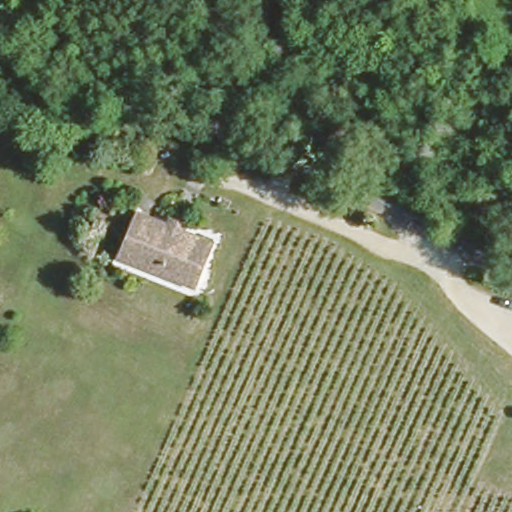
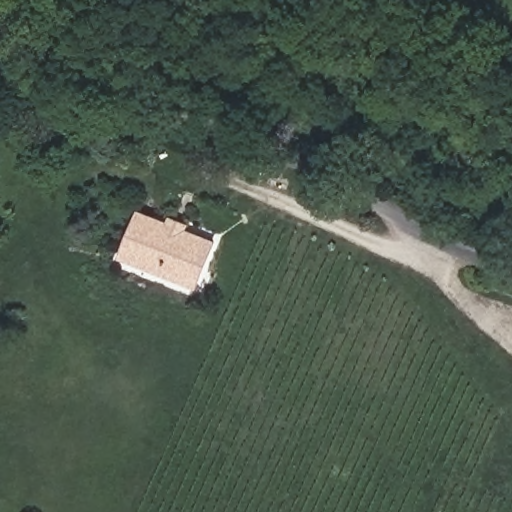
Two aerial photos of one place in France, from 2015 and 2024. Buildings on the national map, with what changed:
unchanged [(209,239),(188,282),(114,247),(135,204),(209,239)]

